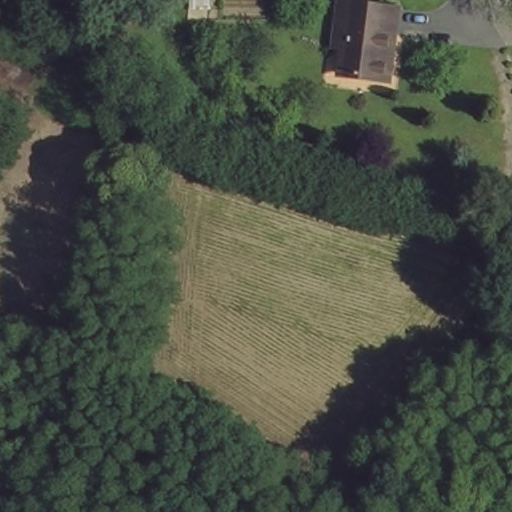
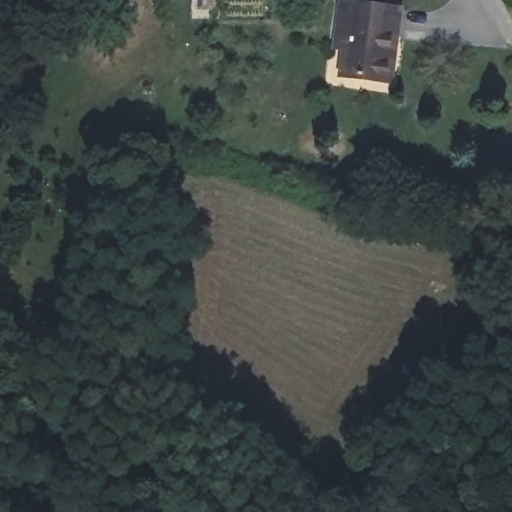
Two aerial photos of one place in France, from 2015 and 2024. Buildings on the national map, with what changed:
unchanged [(386,79),(341,74),(350,4),(386,8),(399,10),(396,31),(390,30),(386,55),(386,79)]

